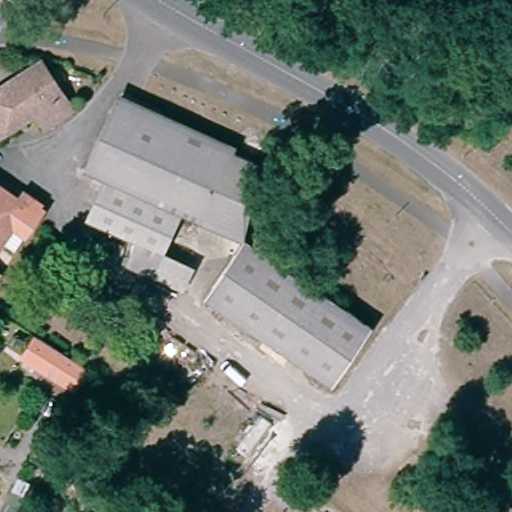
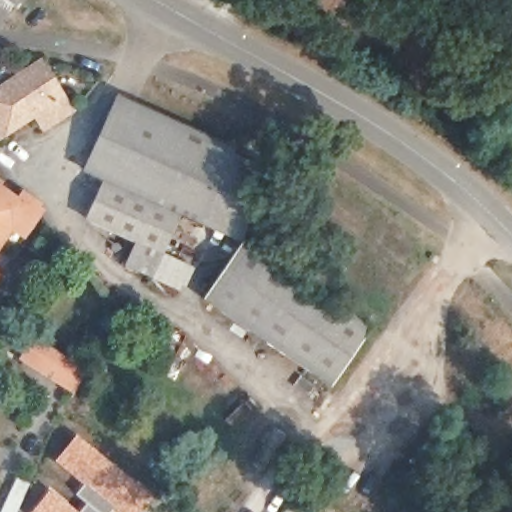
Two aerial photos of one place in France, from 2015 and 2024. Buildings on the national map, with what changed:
unchanged [(66,110),(37,129),(27,115),(0,132),(0,86),(36,62),(66,110)]
unchanged [(192,217),(179,211),(101,179),(80,170),(111,98),(222,144),(192,217)]
unchanged [(192,217),(222,144),(260,160),(256,185),(245,240),(215,226),(192,217)]
unchanged [(83,219),(101,179),(179,211),(164,244),(149,280),(130,271),(119,267),(131,239),(83,219)]
unchanged [(0,248),(0,188),(30,206),(0,248)]
unchanged [(326,383),(203,303),(245,240),(367,322),(326,383)]
unchanged [(66,395),(12,359),(31,335),(81,366),(66,395)]
new [(85,502),(75,493),(82,484),(54,460),(76,432),(131,477),(154,497),(141,512),(30,512),(50,487),(77,511),(85,502)]
new [(17,512),(0,512),(17,476),(31,483),(17,512)]

